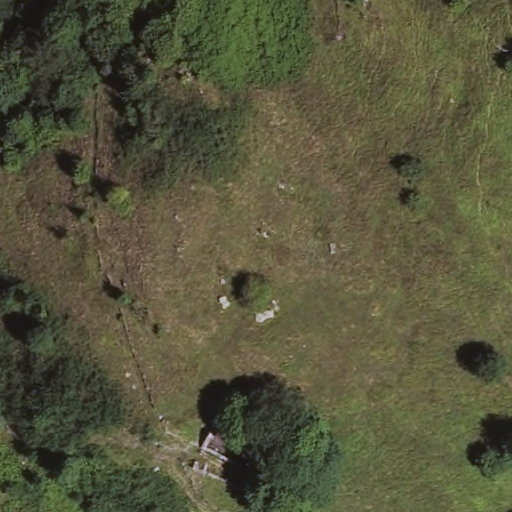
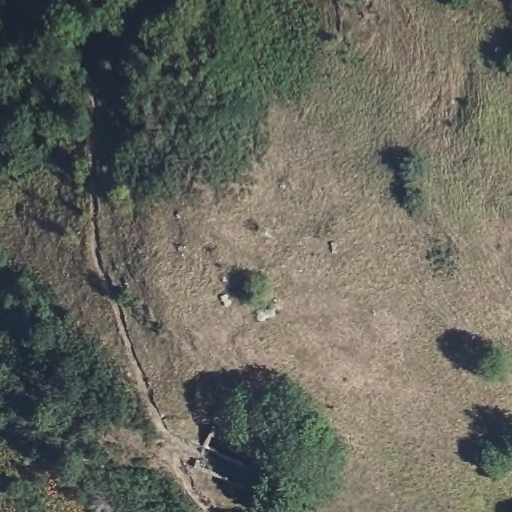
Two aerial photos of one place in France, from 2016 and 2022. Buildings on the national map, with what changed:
unchanged [(214,441),(242,459),(233,472),(205,456),(214,441)]

